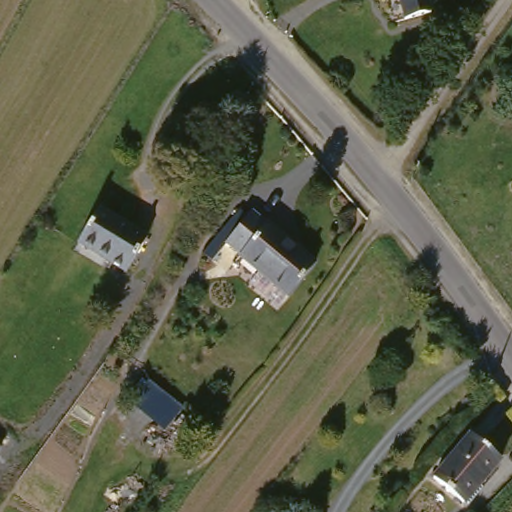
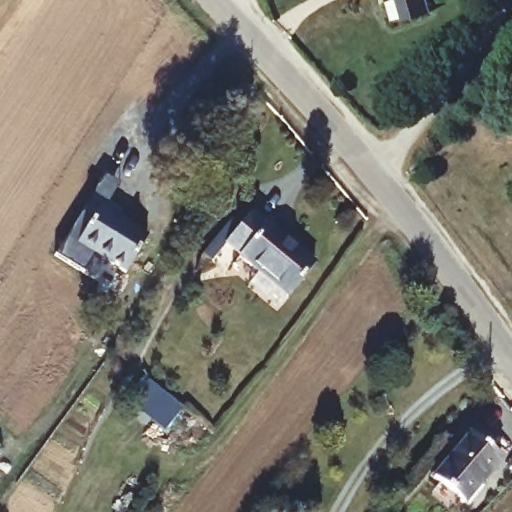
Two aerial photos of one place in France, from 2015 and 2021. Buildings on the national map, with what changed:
unchanged [(402,14),(399,0),(428,0),(430,7),(432,15),(405,22),(402,14)]
unchanged [(247,282),(257,269),(241,256),(242,254),(227,242),(252,210),(268,223),(270,222),(315,257),(287,292),(286,292),(276,305),(247,282)]
unchanged [(80,251),(100,217),(149,245),(127,278),(80,251)]
unchanged [(148,386),(181,409),(163,434),(132,410),(148,386)]
unchanged [(433,482),(468,437),(498,460),(464,505),(433,482)]
unchanged [(0,445),(9,451),(0,464),(0,445)]

